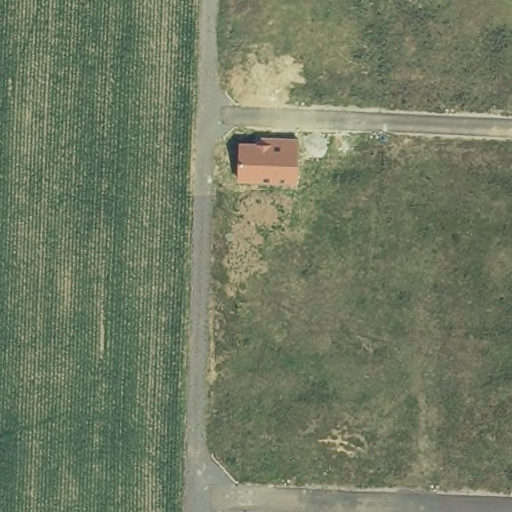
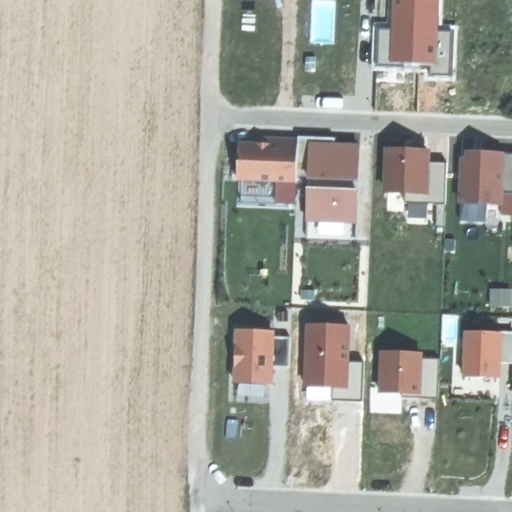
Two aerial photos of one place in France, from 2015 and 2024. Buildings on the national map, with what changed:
new [(441,30),(453,31),(451,74),(430,76),(430,68),(375,65),(376,26),(390,26),(391,0),(441,0),(441,30)]
unchanged [(297,183),(238,181),(239,142),(256,142),(256,136),(299,138),(297,183)]
new [(306,177),(297,177),(299,138),(336,140),(336,142),(361,144),(357,224),(304,222),(306,177)]
new [(433,150),(432,162),(446,163),(445,204),(406,202),(406,194),(382,193),(385,147),(433,150)]
new [(465,158),(465,151),(512,154),(512,215),(502,214),(503,206),(458,204),(460,158),(465,158)]
new [(510,304),(490,304),(490,287),(510,287),(510,304)]
new [(350,326),(350,362),(365,363),(363,402),(331,403),(331,388),(301,387),(305,325),(350,326)]
new [(503,326),(503,331),(512,332),(512,364),(505,364),(504,386),(457,383),(460,326),(503,326)]
new [(276,331),(276,336),(289,338),(288,367),(275,365),(274,385),(233,384),(235,329),(276,331)]
new [(424,353),(424,358),(439,359),(438,399),(401,399),(401,394),(377,393),(379,352),(424,353)]

